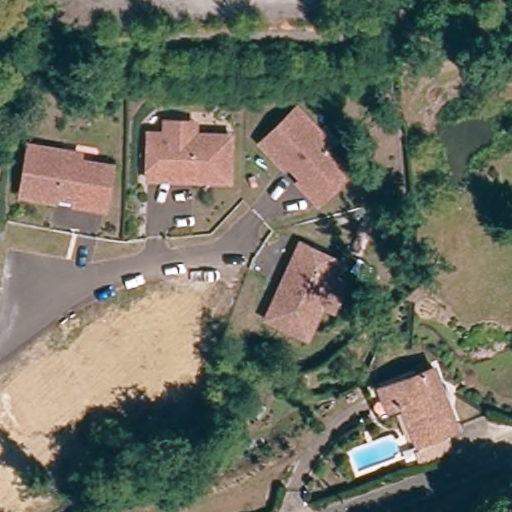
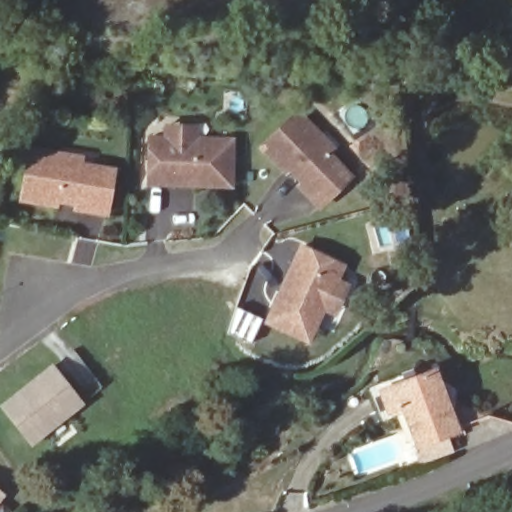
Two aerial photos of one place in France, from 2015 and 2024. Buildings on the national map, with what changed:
unchanged [(408,11),(407,41),(391,41),(392,10),(408,11)]
unchanged [(300,178),(286,163),(282,167),(258,141),(295,107),(318,132),(330,144),(325,149),(348,173),(316,203),(304,190),(296,182),(300,178)]
unchanged [(194,183),(195,177),(185,176),(184,182),(149,180),(151,135),(167,136),(167,124),(197,125),(196,138),(233,139),(231,184),(194,183)]
unchanged [(74,199),(53,195),(52,201),(18,196),(26,145),(60,150),(78,154),(76,160),(110,165),(103,209),(85,206),(73,204),(74,199)]
unchanged [(322,307),(306,340),(265,320),(281,288),(287,290),(291,281),(286,279),(301,246),(342,265),(335,280),(347,285),(334,313),(322,307)]
new [(31,446),(0,406),(0,403),(52,364),(84,404),(31,446)]
unchanged [(434,371),(457,432),(418,447),(402,407),(388,412),(380,392),(434,371)]

